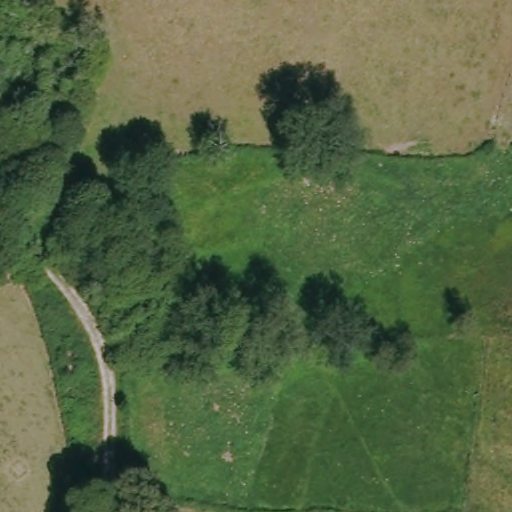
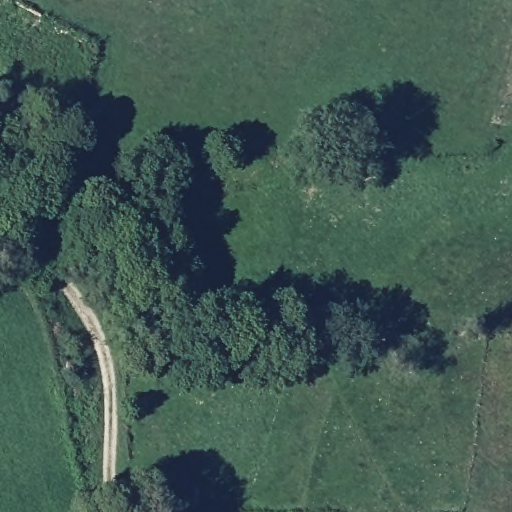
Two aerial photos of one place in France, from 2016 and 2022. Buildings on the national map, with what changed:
unchanged [(25,276),(1,285),(0,283),(0,261),(17,255),(25,276)]

